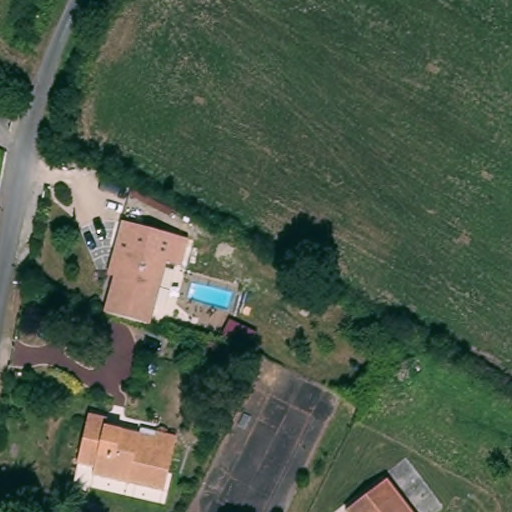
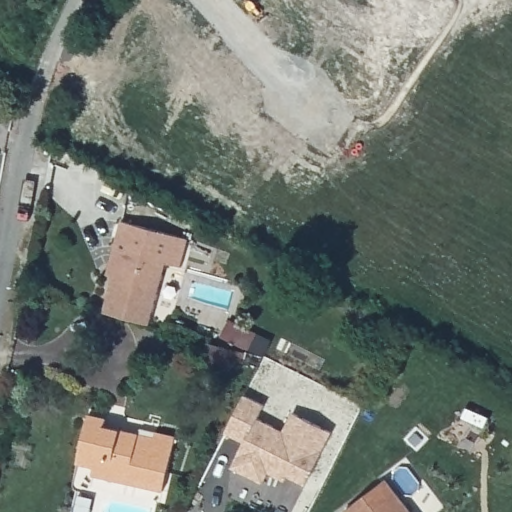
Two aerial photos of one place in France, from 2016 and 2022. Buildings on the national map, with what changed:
unchanged [(188,239),(181,266),(167,262),(150,324),(104,311),(113,275),(108,274),(110,262),(122,220),(188,239)]
unchanged [(255,335),(249,349),(222,336),(229,322),(255,335)]
new [(286,474),(284,480),(268,471),(263,483),(232,467),(244,442),(226,433),(245,395),(263,405),(257,418),(284,431),(293,412),(332,431),(307,484),(286,474)]
unchanged [(164,491),(93,475),(95,467),(78,463),(89,415),(107,418),(105,426),(140,434),(141,431),(156,435),(157,432),(176,437),(164,491)]
unchanged [(411,512),(348,512),(346,510),(386,480),(411,512)]

